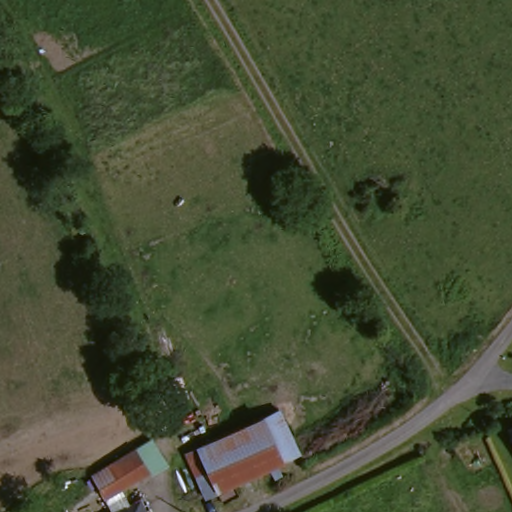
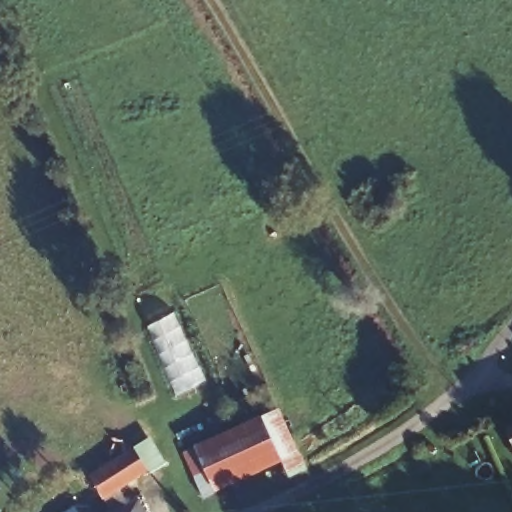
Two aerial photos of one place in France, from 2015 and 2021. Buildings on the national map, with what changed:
unchanged [(294,452),(227,483),(218,465),(206,468),(196,447),(272,409),(294,452)]
unchanged [(512,428),(512,462),(500,433),(512,428)]
unchanged [(144,477),(86,508),(74,490),(132,453),(144,477)]
unchanged [(61,512),(60,512),(54,503),(69,495),(75,502),(61,512)]
unchanged [(139,512),(120,512),(135,505),(139,512)]

